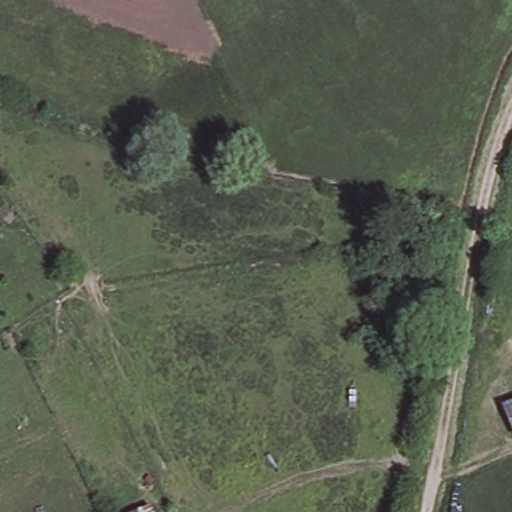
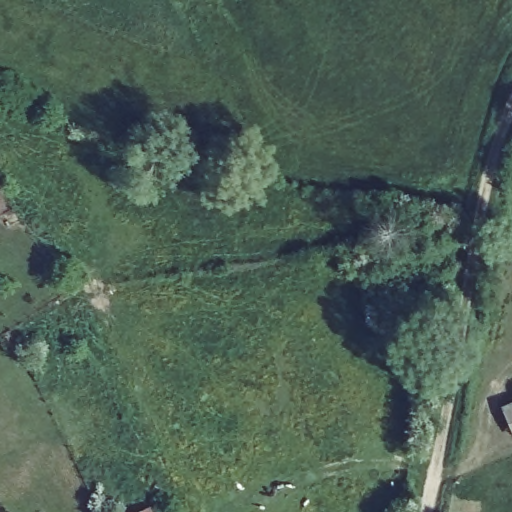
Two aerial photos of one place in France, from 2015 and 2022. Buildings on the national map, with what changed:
unchanged [(505,407),(512,403),(512,427),(505,407)]
unchanged [(150,506),(153,512),(137,512),(150,506)]

